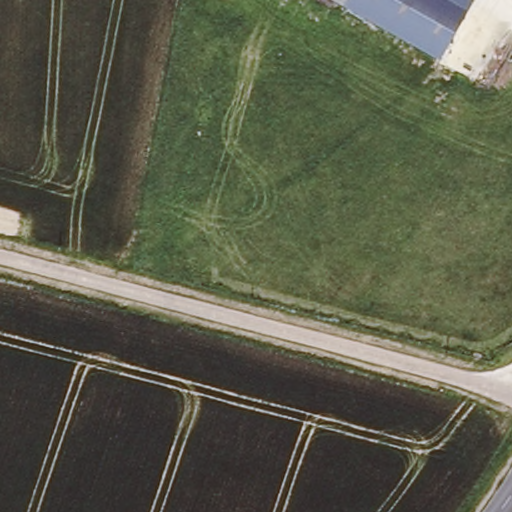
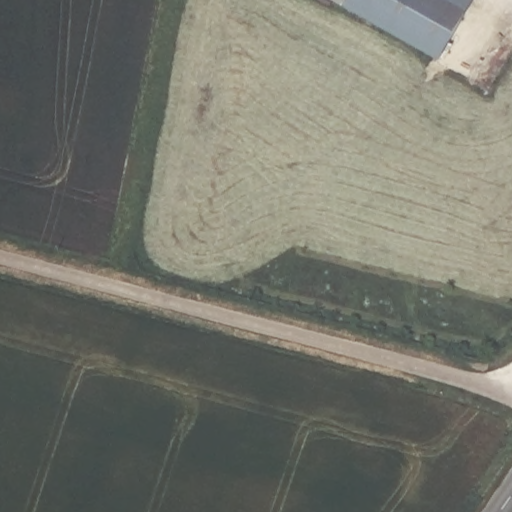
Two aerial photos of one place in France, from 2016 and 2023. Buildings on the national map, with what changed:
unchanged [(338,0),(351,0),(348,6),(338,0)]
unchanged [(348,6),(351,0),(471,0),(442,57),(348,6)]

